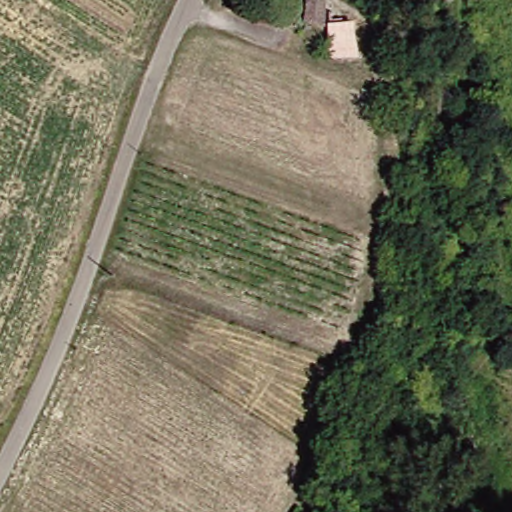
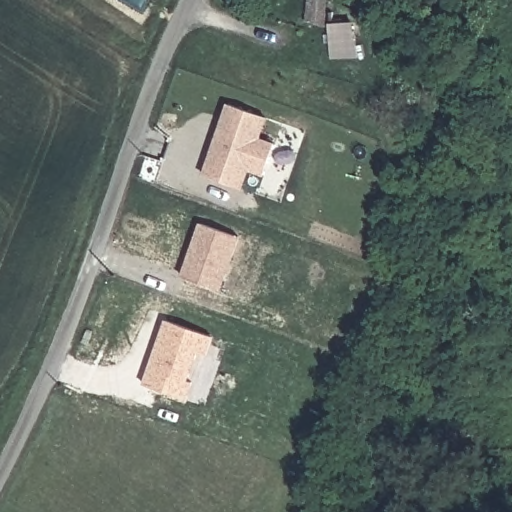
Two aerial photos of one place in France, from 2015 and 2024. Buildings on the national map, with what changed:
unchanged [(324,21),(306,22),(306,0),(323,0),(324,21)]
new [(245,190),(204,176),(230,104),(269,117),(262,140),(276,146),(265,177),(251,172),(245,190)]
new [(221,291),(184,277),(203,223),(241,237),(221,291)]
new [(210,356),(200,352),(190,380),(196,382),(190,401),(143,385),(165,320),(216,337),(210,356)]

